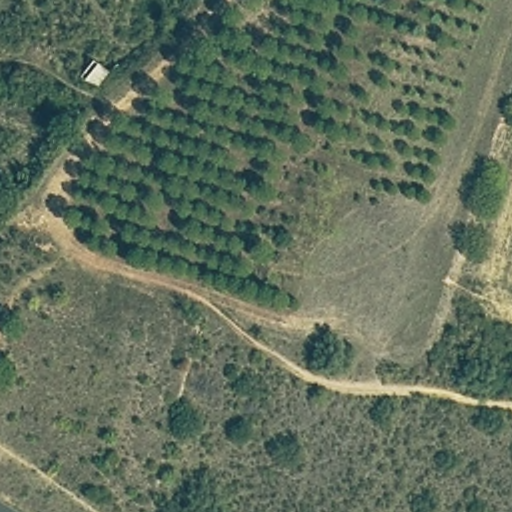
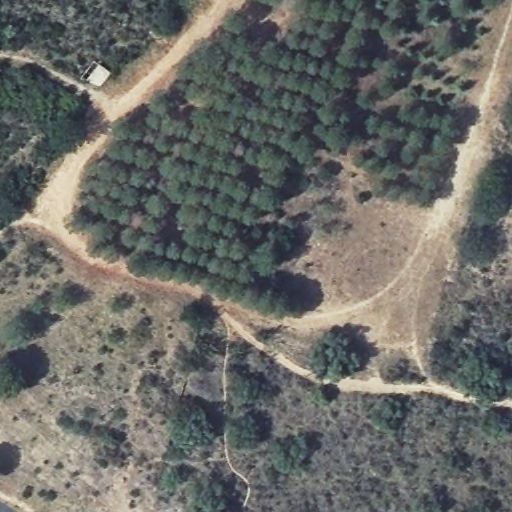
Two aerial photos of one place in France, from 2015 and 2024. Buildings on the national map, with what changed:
unchanged [(107,73),(96,88),(77,79),(94,60),(107,73)]

